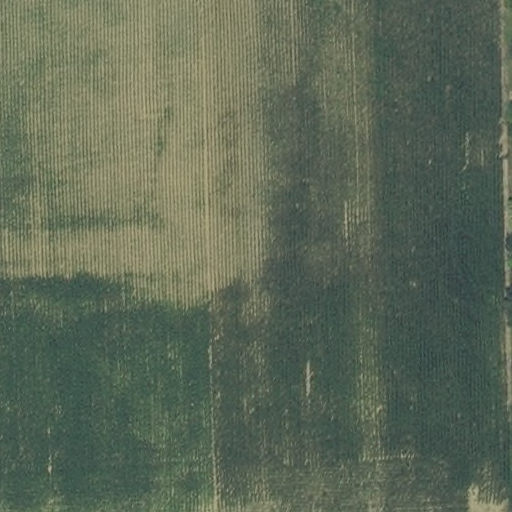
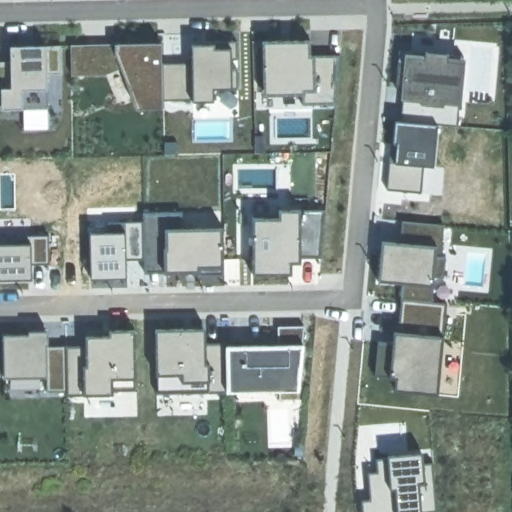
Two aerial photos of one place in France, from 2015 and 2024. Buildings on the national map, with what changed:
new [(192,61),(191,45),(192,44),(206,44),(206,41),(207,41),(237,40),(238,40),(238,41),(239,60),(238,60),(233,60),(233,68),(238,68),(239,69),(240,89),(240,90),(238,90),(215,90),(215,102),(215,103),(193,104),(192,103),(192,102),(192,101),(162,100),(162,62),(192,61)]
new [(310,40),(312,55),(340,55),(335,104),(303,105),(302,95),(264,95),(263,41),(310,40)]
new [(162,44),(162,62),(162,100),(162,108),(138,109),(122,68),(105,74),(72,75),(72,46),(162,44)]
new [(10,49),(57,46),(57,75),(47,75),(49,106),(0,108),(0,63),(11,62),(10,49)]
new [(400,50),(426,51),(464,56),(458,125),(401,120),(404,89),(396,87),(400,50)]
new [(391,144),(393,144),(395,121),(438,125),(435,167),(425,166),(422,193),(387,190),(391,144)]
new [(279,217),(279,210),(325,210),(320,257),(302,258),(302,263),(292,263),(292,275),(253,275),(253,217),(279,217)]
new [(126,232),(144,232),(143,212),(182,211),(183,229),(223,228),(225,276),(198,276),(198,273),(165,274),(165,273),(145,274),(145,272),(146,272),(146,270),(145,270),(145,260),(127,260),(127,278),(91,280),(90,234),(126,232)]
new [(398,303),(399,279),(375,280),(377,242),(400,242),(399,220),(442,221),(440,247),(432,247),(430,302),(398,303)]
new [(10,236),(50,235),(50,265),(32,265),(32,280),(0,281),(0,245),(10,245),(10,236)]
new [(392,390),(392,377),(372,373),(375,340),(394,344),(398,303),(430,302),(447,305),(436,394),(392,390)]
new [(206,328),(207,343),(225,342),(227,346),(265,345),(278,345),(278,326),(305,326),(298,399),(280,400),(279,391),(157,394),(155,330),(206,328)]
new [(28,335),(30,331),(48,331),(49,346),(85,345),(86,330),(135,330),(137,391),(114,391),(113,395),(67,396),(67,391),(47,392),(47,377),(5,378),(4,335),(28,335)]
new [(370,500),(368,472),(377,471),(376,459),(388,458),(388,455),(423,452),(424,463),(433,462),(437,512),(362,512),(362,500),(370,500)]

